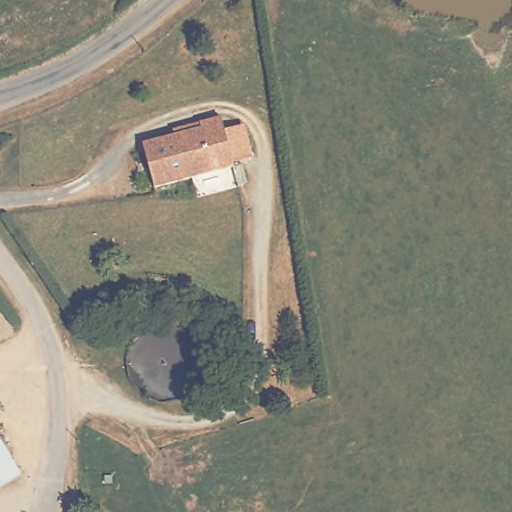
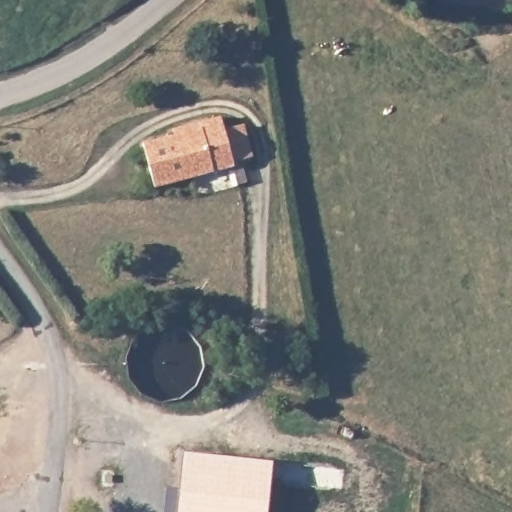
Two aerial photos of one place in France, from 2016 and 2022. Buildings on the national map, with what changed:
unchanged [(135,144),(194,129),(192,122),(214,116),(218,131),(235,126),(246,164),(228,169),(148,190),(135,144)]
new [(165,487),(177,488),(182,451),(272,461),(267,512),(163,512),(165,487)]

